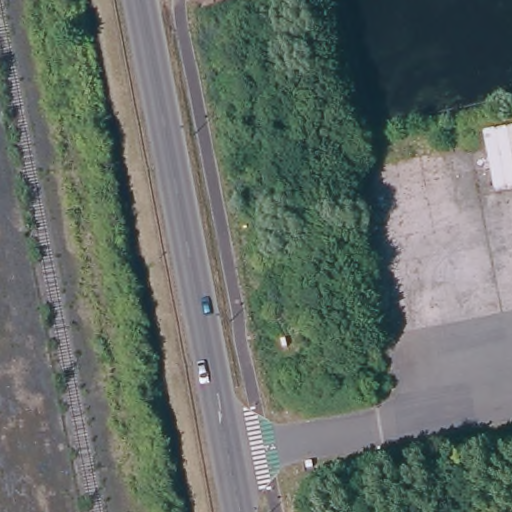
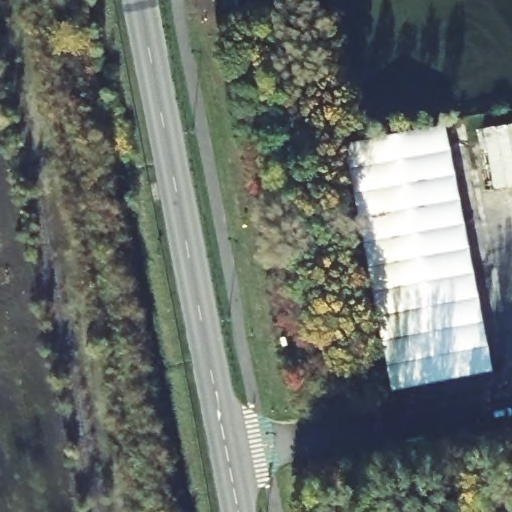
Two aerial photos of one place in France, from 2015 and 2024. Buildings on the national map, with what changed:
new [(491,371),(390,392),(344,146),(444,127),(491,371)]

